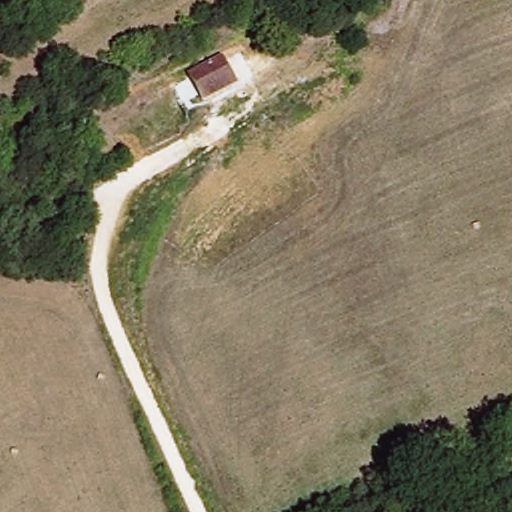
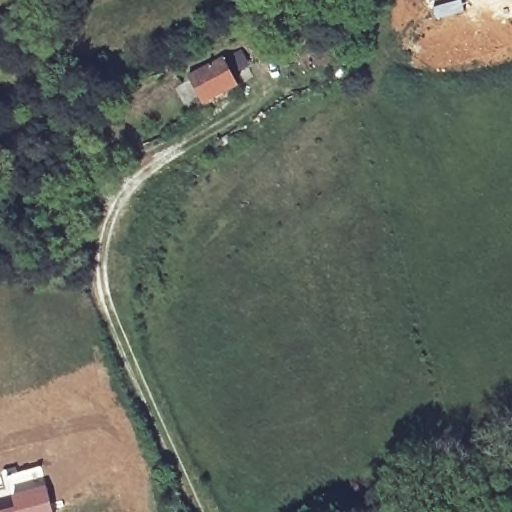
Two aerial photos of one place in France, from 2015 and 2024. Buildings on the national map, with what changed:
unchanged [(317,15),(330,44),(307,55),(295,27),(317,15)]
unchanged [(239,84),(210,103),(192,76),(221,57),(239,84)]
new [(14,505),(10,495),(13,494),(7,475),(42,466),(53,512),(0,512),(0,509),(14,505)]

